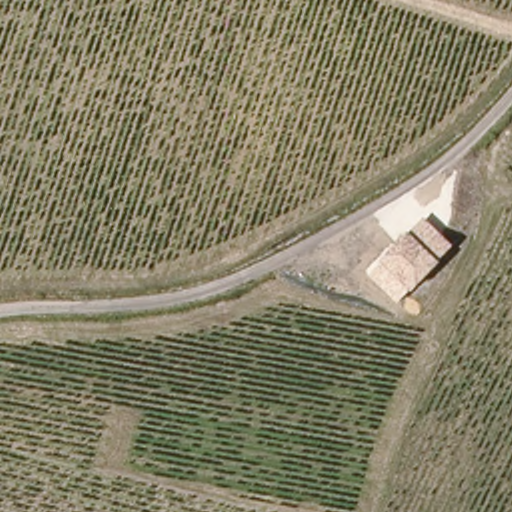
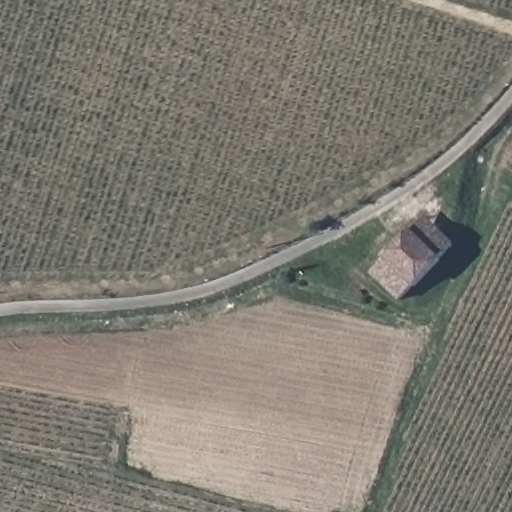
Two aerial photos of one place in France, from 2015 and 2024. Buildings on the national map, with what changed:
unchanged [(413,290),(411,287),(401,301),(371,273),(412,228),(415,229),(428,217),(455,244),(413,290)]

